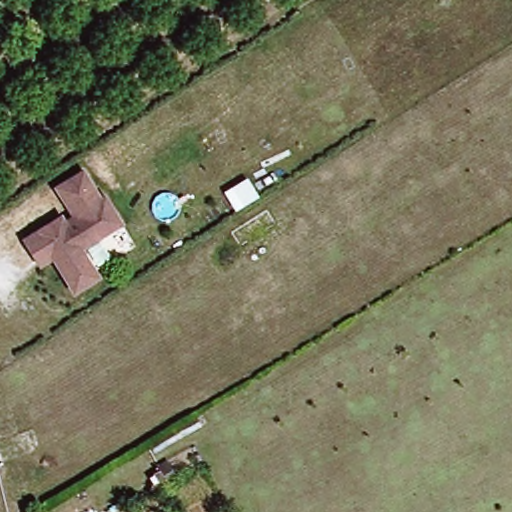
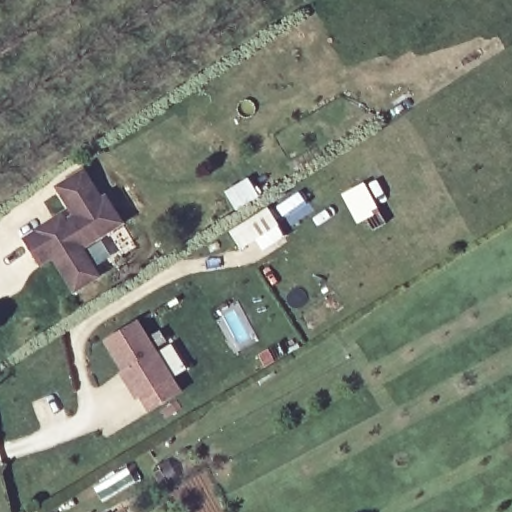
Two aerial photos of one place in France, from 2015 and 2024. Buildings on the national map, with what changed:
unchanged [(65,223),(75,216),(57,188),(84,171),(102,199),(106,197),(124,224),(82,248),(100,278),(77,292),(50,249),(35,259),(23,239),(62,216),(65,223)]
new [(268,210),(277,224),(242,247),(232,233),(268,210)]
new [(107,341),(139,322),(182,393),(152,413),(143,398),(140,401),(131,387),(122,373),(125,371),(107,341)]

